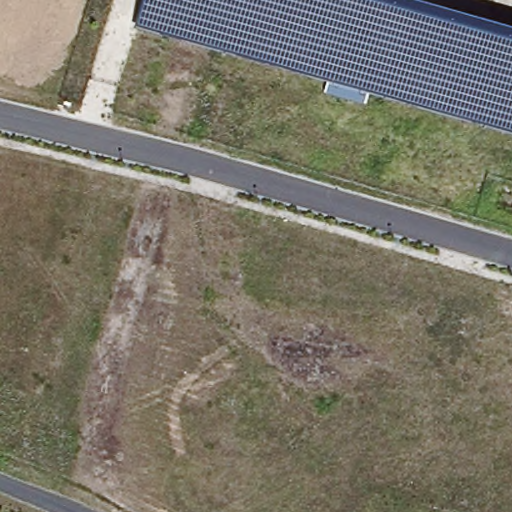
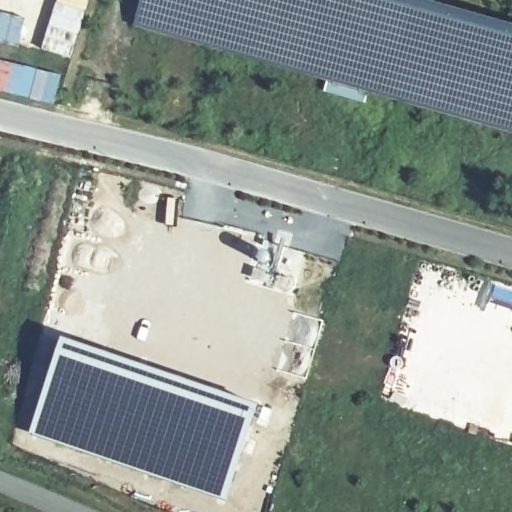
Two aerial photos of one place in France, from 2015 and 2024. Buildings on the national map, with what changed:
unchanged [(419,0),(512,26),(512,132),(368,91),(365,105),(322,93),(326,80),(134,25),(140,0),(419,0)]
new [(60,336),(127,358),(260,405),(245,444),(243,443),(224,499),(28,433),(60,336)]

